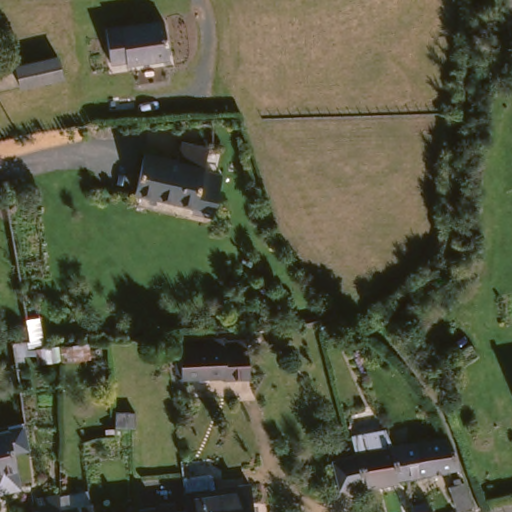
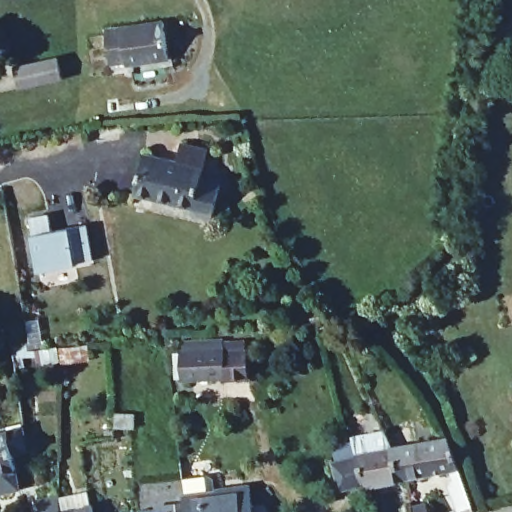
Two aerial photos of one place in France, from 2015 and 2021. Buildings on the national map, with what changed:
unchanged [(178,60),(135,66),(135,63),(119,65),(114,30),(173,23),(178,60)]
unchanged [(21,85),(17,61),(63,54),(66,76),(66,79),(21,85)]
unchanged [(190,144),(216,149),(210,181),(230,185),(224,217),(202,212),(204,207),(145,196),(152,156),(185,162),(190,144)]
new [(46,217),(49,234),(83,229),(89,262),(71,266),(72,268),(35,275),(27,222),(46,217)]
unchanged [(187,381),(185,342),(234,341),(235,352),(258,351),(261,378),(187,381)]
unchanged [(0,430),(16,426),(26,473),(0,478),(0,430)]
unchanged [(338,463),(361,455),(360,451),(356,436),(390,430),(396,444),(395,445),(402,483),(372,488),(370,483),(348,492),(338,463)]
unchanged [(433,484),(432,479),(410,483),(402,483),(395,445),(396,444),(416,441),(415,433),(434,430),(435,437),(452,435),(465,472),(440,477),(442,482),(433,484)]
unchanged [(472,505),(456,508),(450,486),(465,482),(472,505)]
unchanged [(191,495),(238,489),(259,487),(262,512),(193,512),(193,511),(191,495)]
unchanged [(45,501),(60,498),(61,512),(48,512),(45,501)]
unchanged [(425,501),(428,512),(412,512),(410,503),(425,501)]
unchanged [(95,507),(97,512),(70,512),(95,507)]
unchanged [(193,511),(193,512),(181,512),(193,511)]

